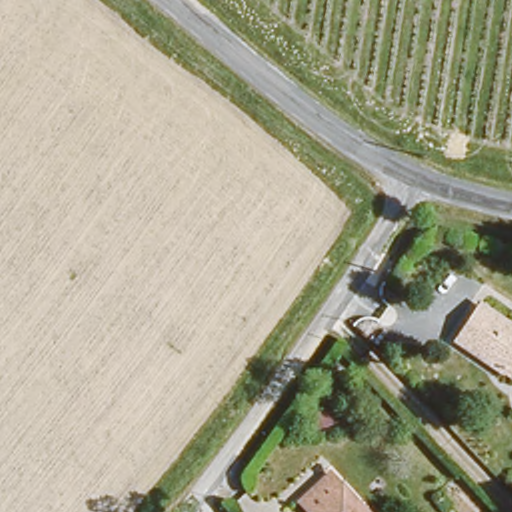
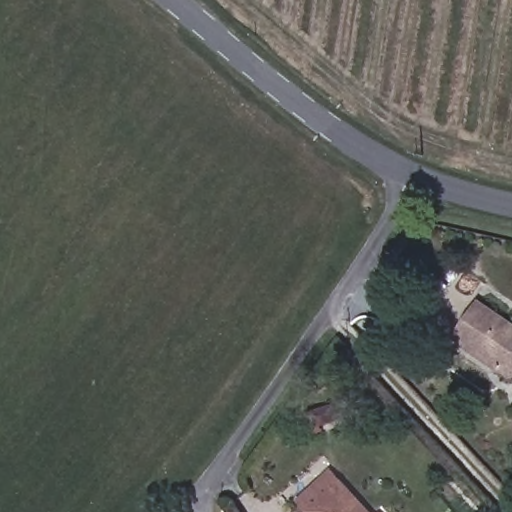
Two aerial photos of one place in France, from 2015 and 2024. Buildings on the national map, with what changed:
unchanged [(458,322),(475,296),(512,318),(512,366),(510,366),(500,361),(499,362),(452,333),(458,322)]
unchanged [(316,465),(331,480),(341,471),(379,512),(310,512),(290,491),(316,465)]

